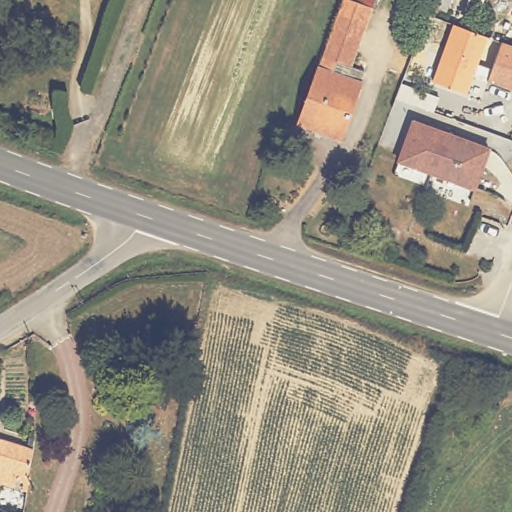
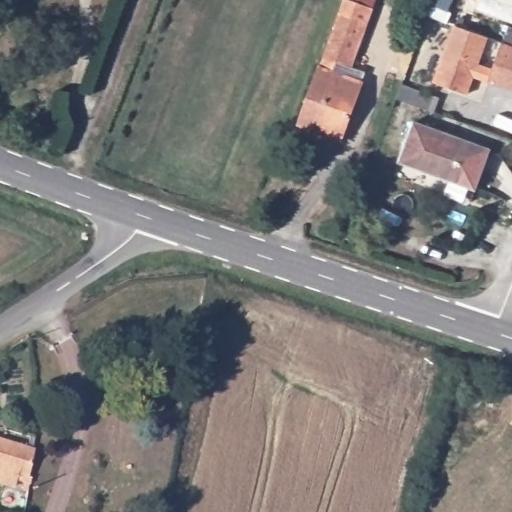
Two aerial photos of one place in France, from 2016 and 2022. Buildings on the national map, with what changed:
unchanged [(356,0),(378,9),(354,67),(339,61),(324,55),(349,0),(356,0)]
unchanged [(487,33),(467,93),(430,81),(450,23),(487,33)]
unchanged [(484,75),(497,40),(512,46),(512,86),(484,75)]
unchanged [(297,122),(324,55),(339,61),(335,72),(361,83),(338,140),(297,122)]
unchanged [(398,155),(415,113),(490,145),(473,187),(398,155)]
unchanged [(0,437),(35,448),(33,473),(20,469),(16,482),(0,477),(0,437)]

